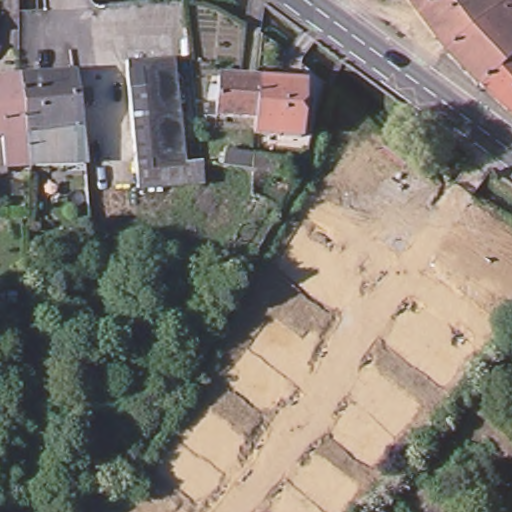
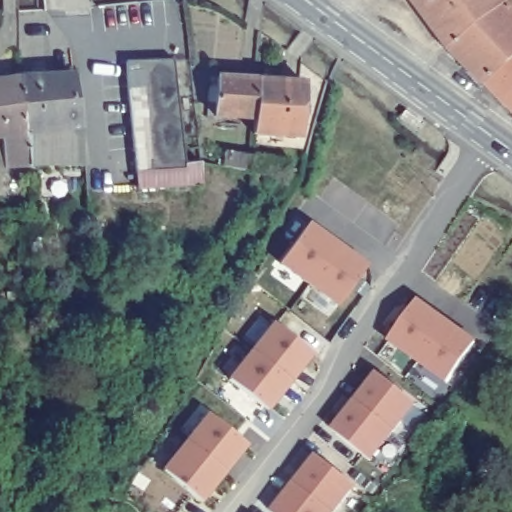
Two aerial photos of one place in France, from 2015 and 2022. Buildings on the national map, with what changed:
unchanged [(408,0),(466,0),(429,29),(408,0)]
unchanged [(466,0),(495,0),(441,44),(429,29),(466,0)]
unchanged [(509,56),(476,80),(441,44),(495,0),(512,0),(512,53),(509,56)]
unchanged [(476,80),(509,56),(512,59),(512,113),(476,80)]
unchanged [(184,159),(186,163),(199,162),(202,181),(163,186),(138,190),(123,71),(122,64),(168,58),(171,68),(168,68),(173,100),(176,100),(184,159)]
unchanged [(67,79),(79,169),(26,170),(16,82),(67,79)]
unchanged [(253,83),(249,123),(210,120),(213,80),(251,83),(253,83)]
unchanged [(3,170),(0,155),(0,84),(16,82),(26,170),(3,170)]
unchanged [(298,86),(296,138),(248,135),(249,123),(253,83),(298,86)]
unchanged [(283,176),(244,170),(218,165),(220,151),(246,155),(284,161),(283,176)]
new [(279,263),(309,223),(366,266),(336,306),(279,263)]
new [(388,341),(419,298),(474,341),(444,383),(388,341)]
new [(268,410),(229,378),(273,323),(313,355),(268,410)]
new [(369,461),(331,429),(375,374),(416,405),(369,461)]
new [(162,469),(208,413),(247,446),(201,502),(162,469)]
new [(335,512),(271,512),(269,511),(294,482),(316,455),(355,486),(335,512)]

